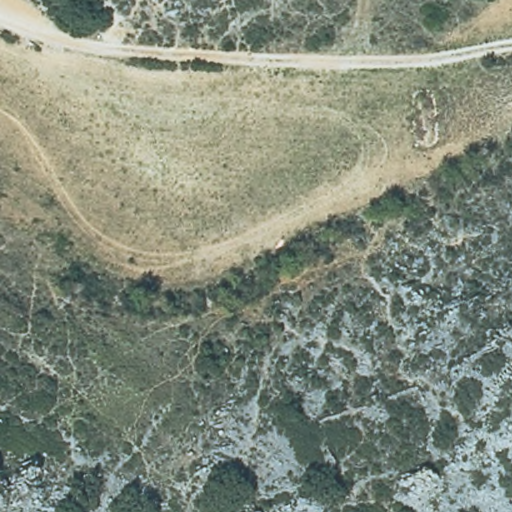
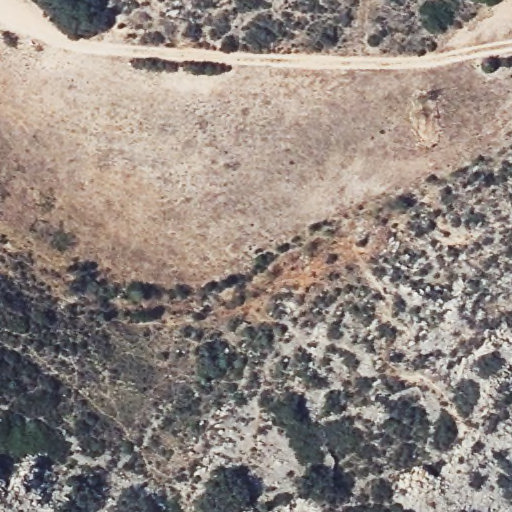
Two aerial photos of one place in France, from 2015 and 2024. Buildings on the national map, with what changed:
[]

